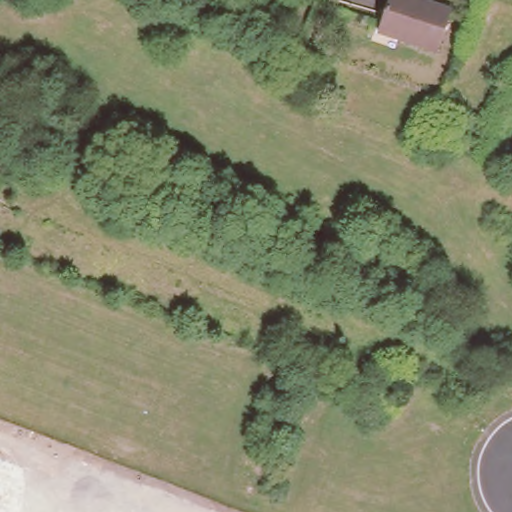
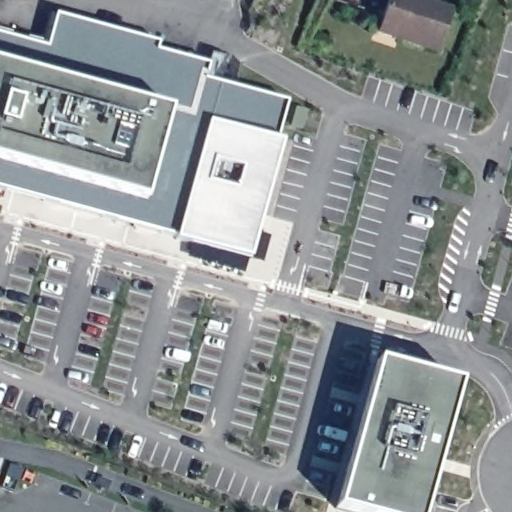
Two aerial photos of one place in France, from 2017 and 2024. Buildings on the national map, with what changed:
unchanged [(417,0),(426,0),(450,7),(437,47),(377,29),(386,0),(415,0),(417,0)]
demolished [(484,0),(512,0),(512,10),(484,0)]
new [(275,142),(280,144),(248,260),(175,240),(175,237),(5,190),(0,189),(0,35),(46,48),(55,15),(157,45),(155,51),(207,66),(203,81),(285,104),(275,142)]
new [(299,130),(289,127),(294,109),(304,112),(299,130)]
new [(456,385),(420,512),(347,512),(333,508),(374,362),(456,385)]

